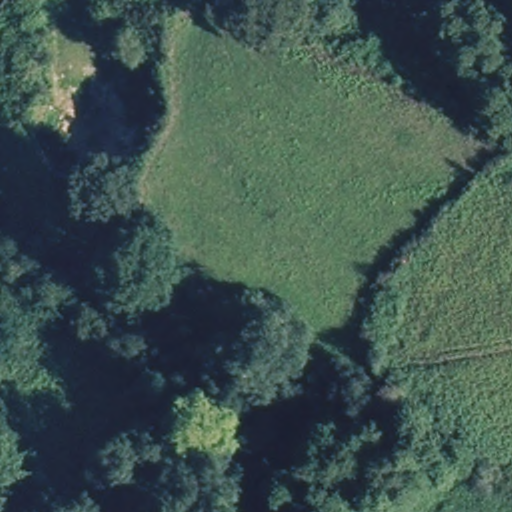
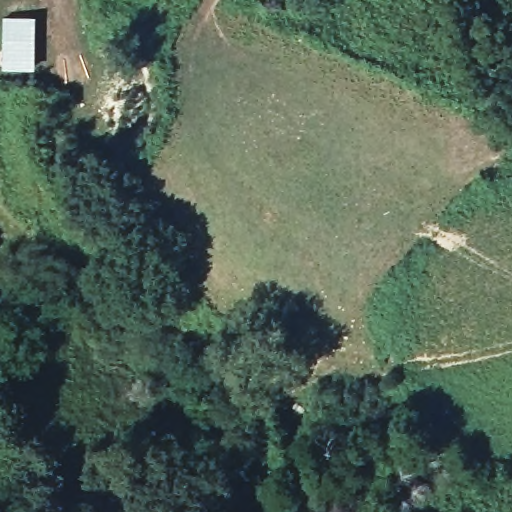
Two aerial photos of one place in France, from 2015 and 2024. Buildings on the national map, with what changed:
new [(1,16),(34,15),(34,70),(0,71),(0,53),(1,16)]

